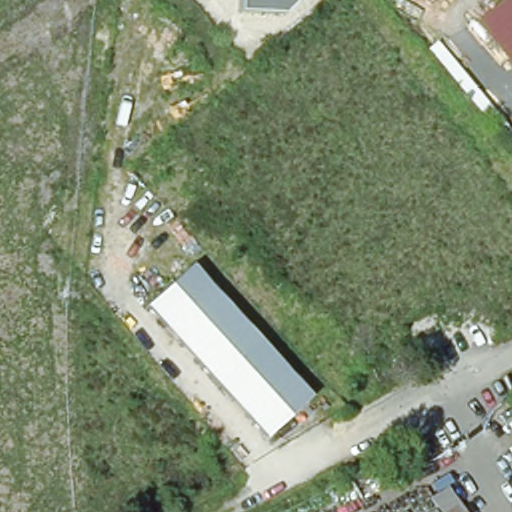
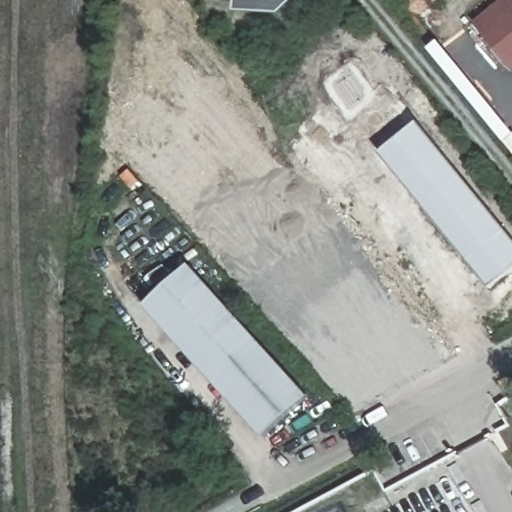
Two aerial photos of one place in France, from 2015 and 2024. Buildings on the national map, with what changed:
unchanged [(241,0),(297,0),(282,14),(240,12),(241,0)]
unchanged [(436,2),(434,0),(438,0),(436,2)]
unchanged [(494,0),(512,0),(512,66),(470,19),(494,0)]
new [(430,48),(442,38),(512,127),(512,150),(505,141),(430,48)]
new [(419,122),(512,236),(512,271),(492,287),(381,152),(419,122)]
unchanged [(313,396),(265,437),(145,307),(192,265),(313,396)]
unchanged [(458,493),(468,512),(444,512),(440,504),(458,493)]

